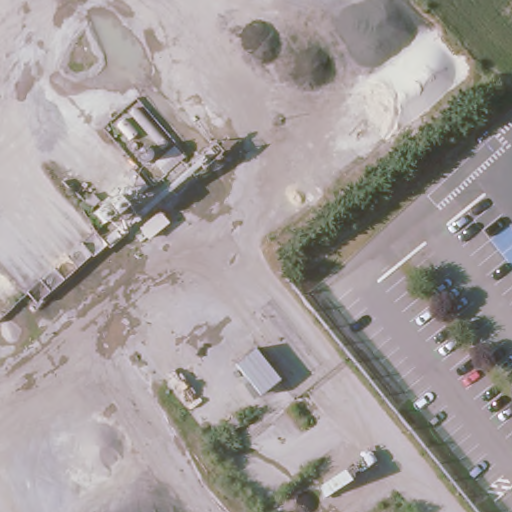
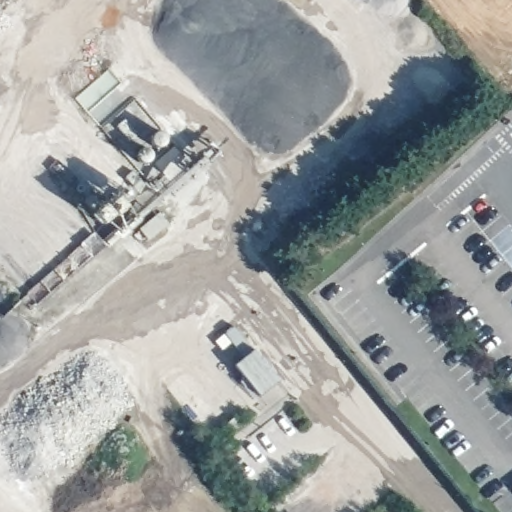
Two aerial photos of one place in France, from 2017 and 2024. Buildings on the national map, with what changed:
unchanged [(250,353),(277,385),(257,401),(232,369),(250,353)]

